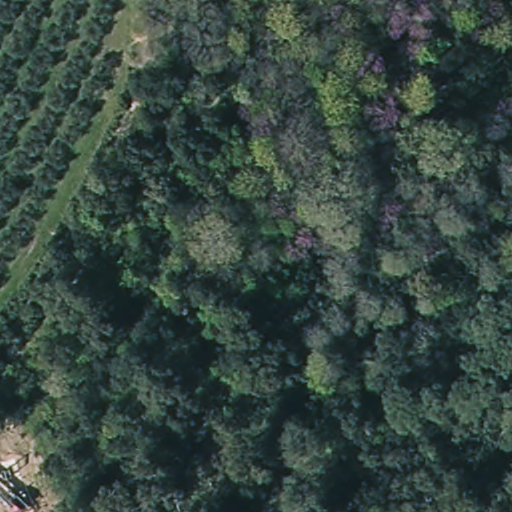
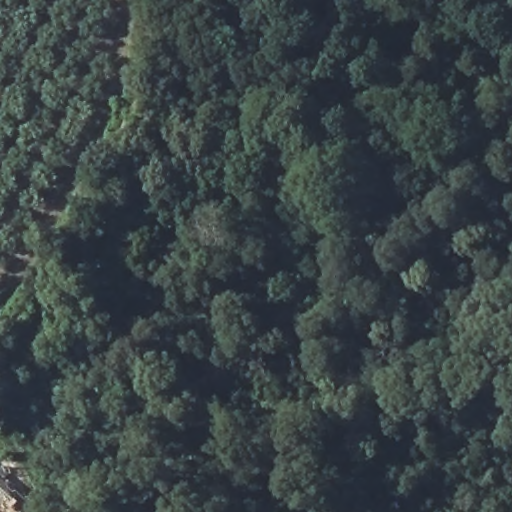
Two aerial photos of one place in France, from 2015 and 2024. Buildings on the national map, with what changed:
[]

